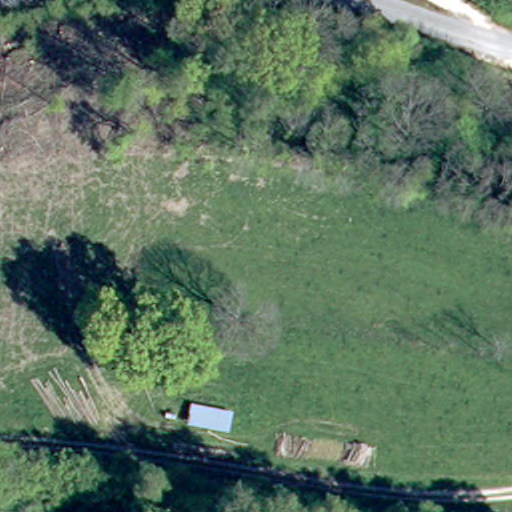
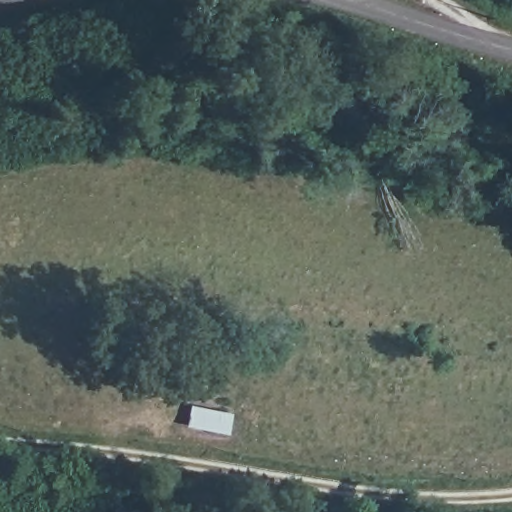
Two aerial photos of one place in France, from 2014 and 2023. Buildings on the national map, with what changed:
unchanged [(241,416),(236,440),(187,429),(189,410),(241,416)]

